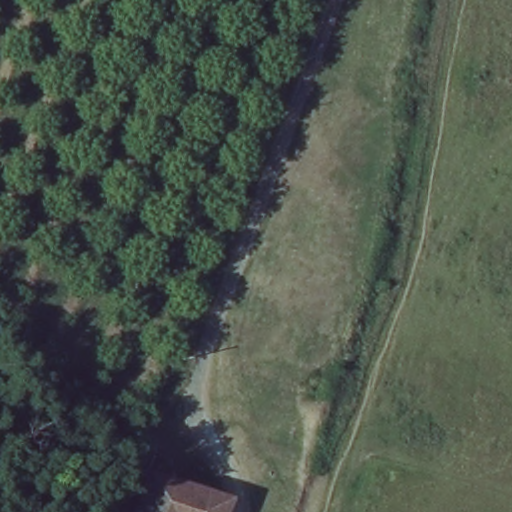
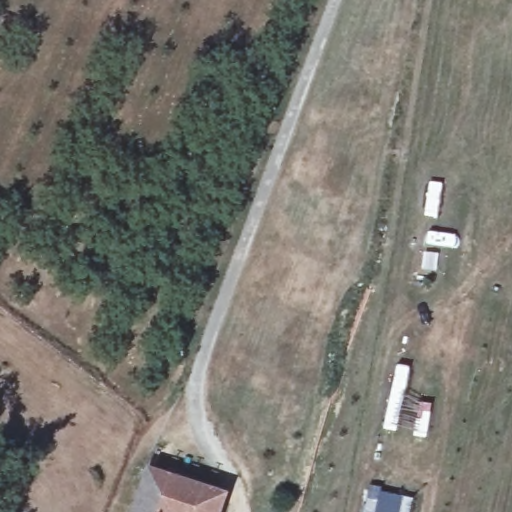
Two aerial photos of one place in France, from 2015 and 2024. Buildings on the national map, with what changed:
unchanged [(138,512),(151,474),(224,499),(220,512),(138,512)]
new [(365,512),(370,490),(412,500),(410,512),(365,512)]

